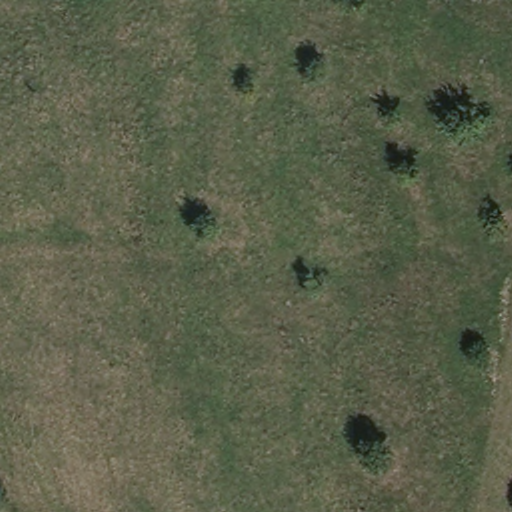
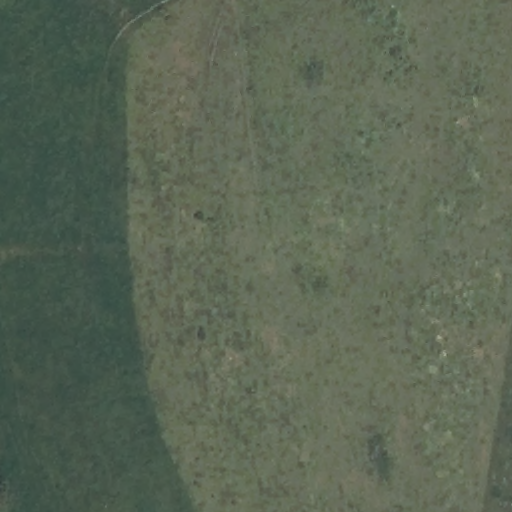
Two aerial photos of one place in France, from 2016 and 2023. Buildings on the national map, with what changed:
[]

